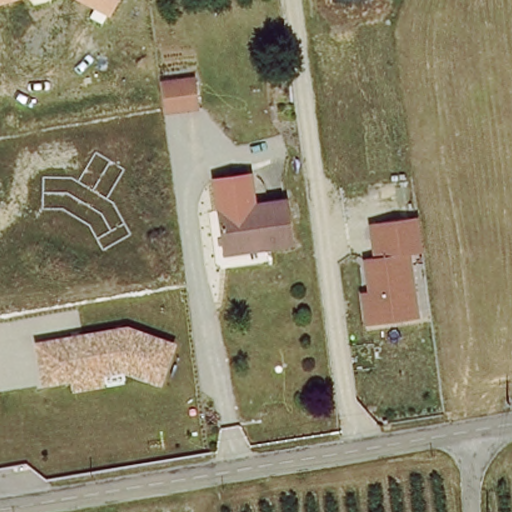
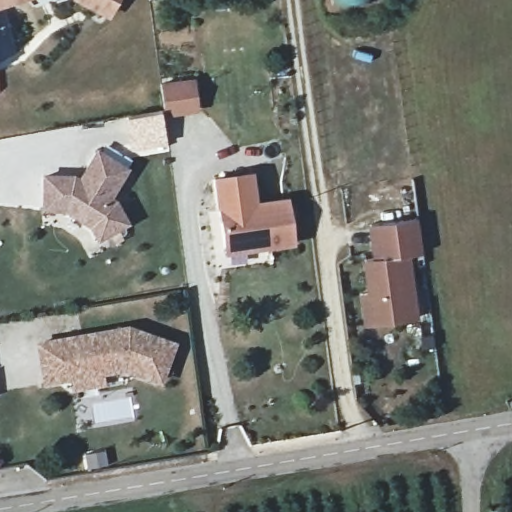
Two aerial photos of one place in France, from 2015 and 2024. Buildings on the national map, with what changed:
unchanged [(0,8),(0,0),(31,0),(0,8)]
unchanged [(75,2),(76,0),(122,0),(112,20),(75,2)]
new [(370,4),(332,6),(332,0),(370,0),(370,4)]
unchanged [(195,80),(199,110),(168,114),(164,84),(195,80)]
new [(41,175),(74,176),(80,177),(98,150),(130,171),(115,199),(130,225),(98,245),(88,229),(64,215),(40,214),(41,175)]
unchanged [(257,206),(222,210),(218,180),(254,174),(257,206)]
unchanged [(226,247),(222,210),(257,206),(289,202),(295,245),(253,250),(227,254),(226,247)]
unchanged [(359,294),(368,293),(364,261),(376,260),(370,227),(420,220),(424,257),(412,259),(421,320),(365,327),(359,294)]
unchanged [(34,345),(130,328),(176,346),(160,388),(123,375),(104,378),(104,388),(73,393),(71,384),(42,389),(34,345)]

